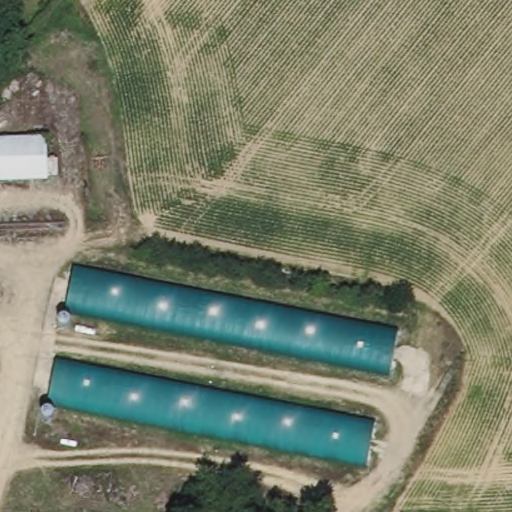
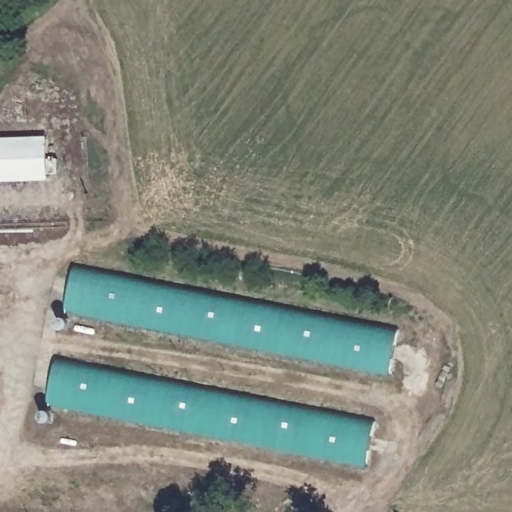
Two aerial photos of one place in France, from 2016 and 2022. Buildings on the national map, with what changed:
unchanged [(8,181),(0,181),(0,140),(17,140),(18,140),(45,139),(45,162),(46,179),(8,181)]
unchanged [(74,266),(216,294),(398,330),(389,377),(314,362),(65,313),(74,266)]
unchanged [(361,472),(42,410),(51,364),(370,425),(361,472)]

